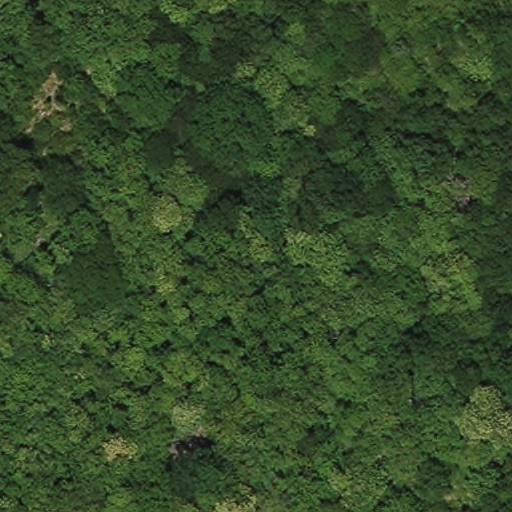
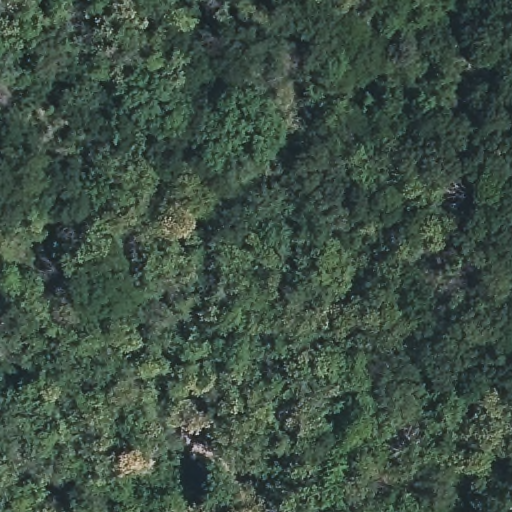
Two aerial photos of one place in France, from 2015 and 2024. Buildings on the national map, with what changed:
[]

